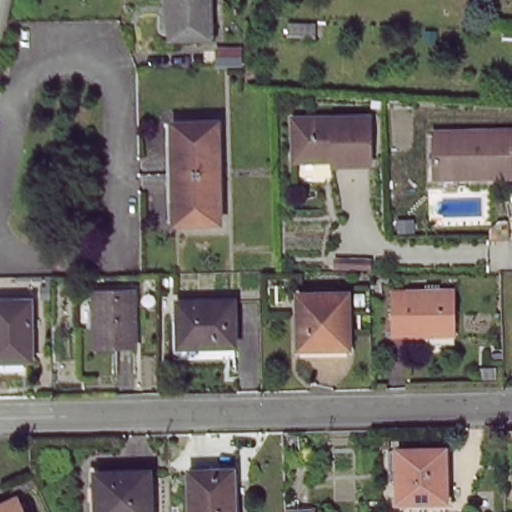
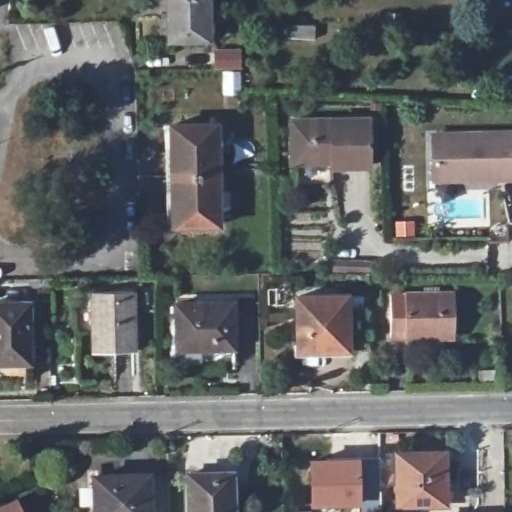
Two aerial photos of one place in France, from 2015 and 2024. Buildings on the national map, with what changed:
unchanged [(168,38),(166,0),(204,0),(206,36),(168,38)]
unchanged [(368,167),(329,167),(330,158),(292,157),(292,118),(368,119),(368,167)]
unchanged [(169,178),(166,128),(212,126),(213,177),(169,178)]
unchanged [(433,135),(512,135),(512,180),(441,180),(432,180),(433,164),(433,135)]
unchanged [(213,177),(214,227),(171,227),(169,178),(213,177)]
unchanged [(134,350),(95,351),(90,290),(131,290),(134,350)]
unchanged [(345,345),(296,346),(294,293),(344,291),(345,345)]
unchanged [(360,304),(350,304),(351,293),(360,292),(360,304)]
unchanged [(448,336),(384,337),(384,294),(445,292),(448,336)]
unchanged [(236,344),(180,346),(179,300),(234,299),(236,344)]
unchanged [(28,363),(0,364),(0,305),(27,304),(28,363)]
unchanged [(447,503),(399,504),(399,453),(446,453),(447,503)]
new [(360,457),(360,505),(310,508),(309,458),(360,457)]
unchanged [(233,512),(186,512),(185,475),(232,474),(233,512)]
unchanged [(151,512),(96,512),(95,478),(151,476),(151,512)]
unchanged [(20,512),(0,512),(0,506),(14,499),(20,512)]

